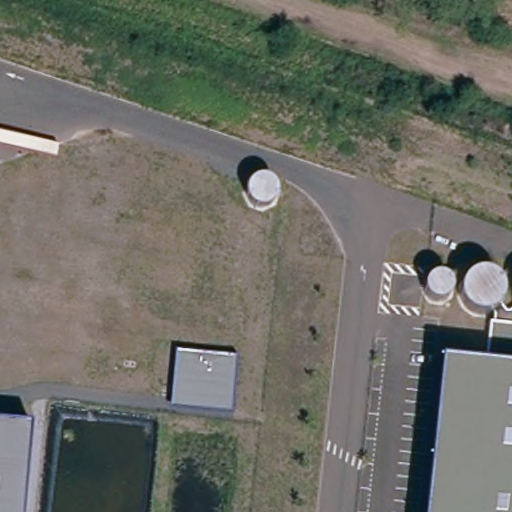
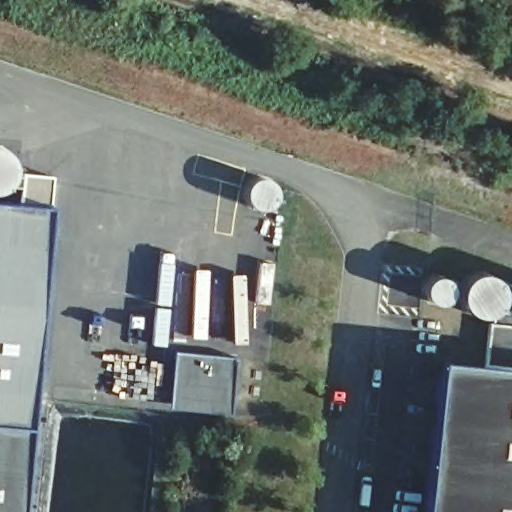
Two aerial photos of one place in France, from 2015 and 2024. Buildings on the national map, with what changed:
new [(0,424),(0,202),(16,204),(21,174),(54,177),(51,207),(30,427),(0,424)]
unchanged [(439,361),(485,366),(490,324),(512,326),(512,512),(422,512),(439,361)]
unchanged [(175,352),(237,357),(232,412),(169,406),(175,352)]
unchanged [(30,427),(22,512),(0,512),(0,424),(30,427)]

